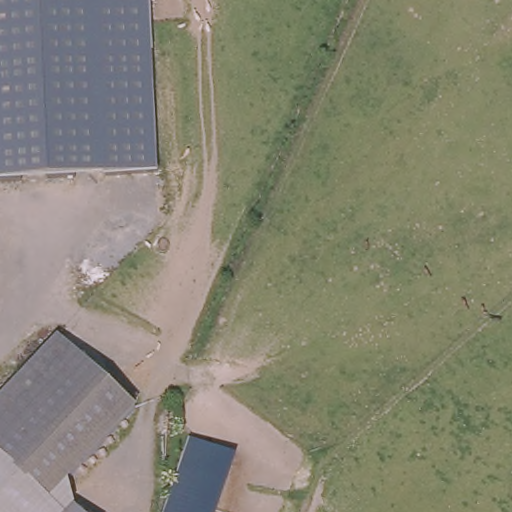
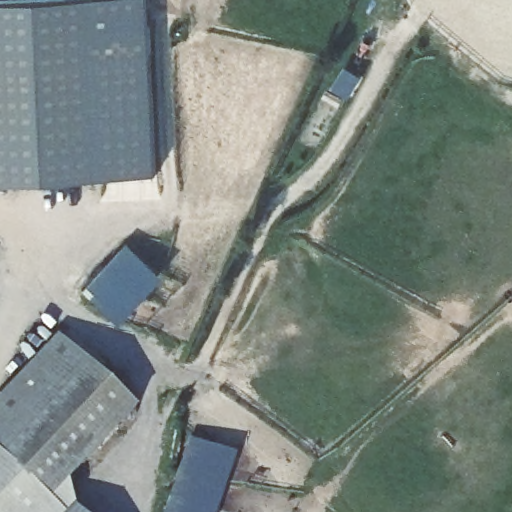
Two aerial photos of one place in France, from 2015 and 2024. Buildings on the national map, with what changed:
unchanged [(2,0),(149,0),(159,173),(0,182),(0,0),(2,0)]
new [(130,246),(165,279),(122,321),(89,291),(130,246)]
unchanged [(120,431),(119,431),(45,357),(0,402),(0,400),(59,336),(137,409),(120,431)]
unchanged [(45,357),(119,431),(120,431),(60,492),(47,504),(0,457),(0,402),(45,357)]
unchanged [(235,454),(216,512),(165,512),(188,440),(235,454)]
unchanged [(47,504),(40,512),(0,512),(0,457),(47,504)]
unchanged [(60,492),(74,506),(68,512),(40,512),(47,504),(60,492)]
unchanged [(80,512),(68,512),(74,506),(80,512)]

